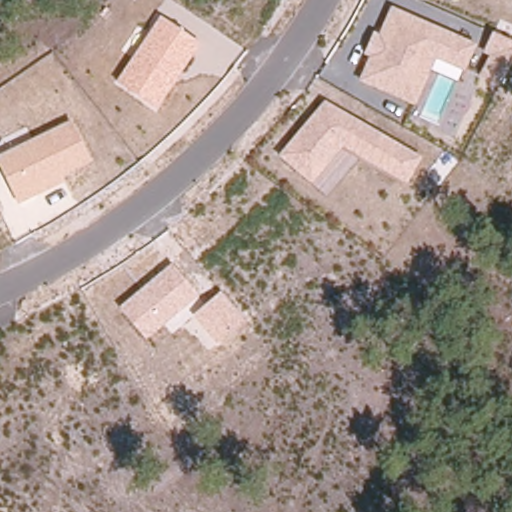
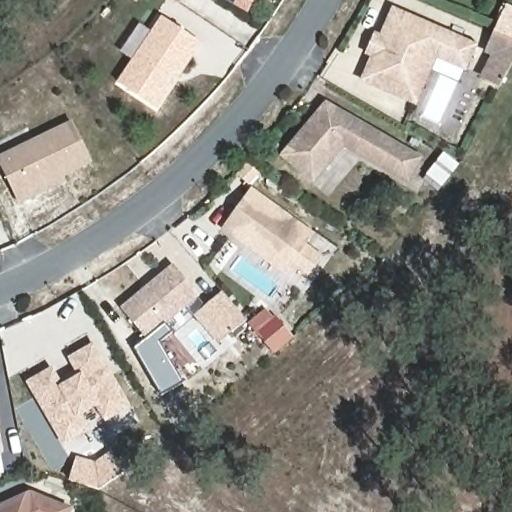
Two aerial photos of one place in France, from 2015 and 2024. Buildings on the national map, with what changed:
new [(173,0),(182,0),(179,4),(173,0)]
new [(248,14),(223,0),(256,0),(248,14)]
unchanged [(466,72),(434,59),(415,107),(358,81),(368,56),(363,54),(372,31),(379,34),(389,7),(478,42),(466,72)]
unchanged [(158,109),(116,81),(161,16),(203,44),(158,109)]
unchanged [(496,85),(492,92),(475,82),(488,56),(483,52),(493,31),(512,39),(512,68),(502,87),(496,85)]
unchanged [(406,182),(343,146),(312,184),(278,154),(322,100),(420,157),(406,182)]
unchanged [(63,175),(66,180),(18,204),(0,164),(0,154),(73,120),(93,162),(63,175)]
new [(449,155),(462,166),(444,190),(430,179),(449,155)]
new [(253,189),(315,234),(308,245),(323,256),(308,276),(292,265),(284,277),(222,231),(253,189)]
unchanged [(145,338),(120,304),(171,262),(199,296),(145,338)]
unchanged [(217,343),(193,312),(219,290),(245,321),(217,343)]
new [(62,378),(79,368),(73,357),(96,344),(130,404),(107,417),(98,402),(82,411),(90,426),(67,440),(34,381),(56,367),(62,378)]
new [(4,451),(0,451),(0,433),(4,451)]
new [(113,451),(128,469),(101,491),(68,482),(74,456),(96,461),(113,451)]
new [(71,507),(69,512),(0,512),(0,506),(33,492),(71,507)]

